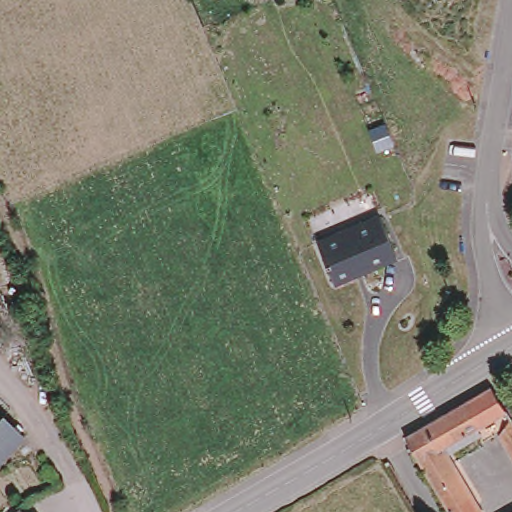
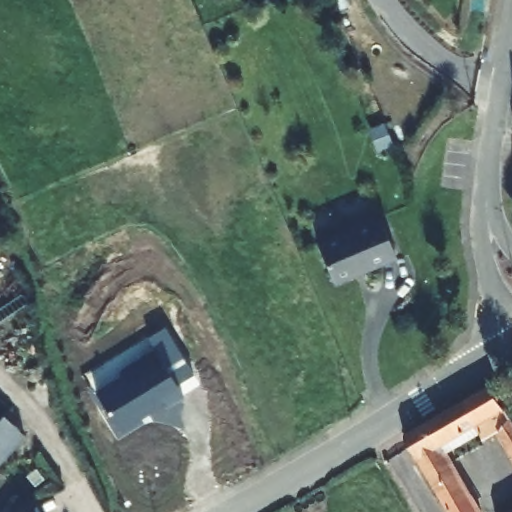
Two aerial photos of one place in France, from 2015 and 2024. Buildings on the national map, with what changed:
demolished [(470,140),(468,151),(457,151),(457,140),(470,140)]
unchanged [(380,218),(397,260),(336,286),(318,245),(380,218)]
new [(123,374),(120,370),(155,349),(149,337),(167,327),(194,374),(176,384),(184,396),(169,406),(165,402),(121,431),(95,391),(123,374)]
unchanged [(406,446),(463,408),(488,390),(496,403),(497,403),(502,413),(479,430),(442,456),(474,512),(445,512),(419,468),(406,446)]
unchanged [(28,441),(0,470),(0,423),(5,417),(28,441)]
unchanged [(512,428),(512,456),(500,437),(508,422),(512,428)]

